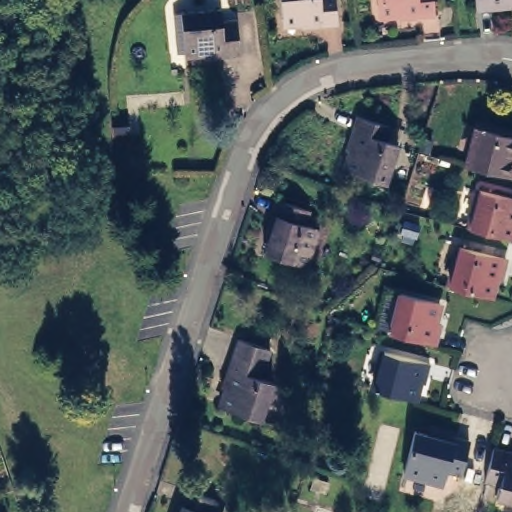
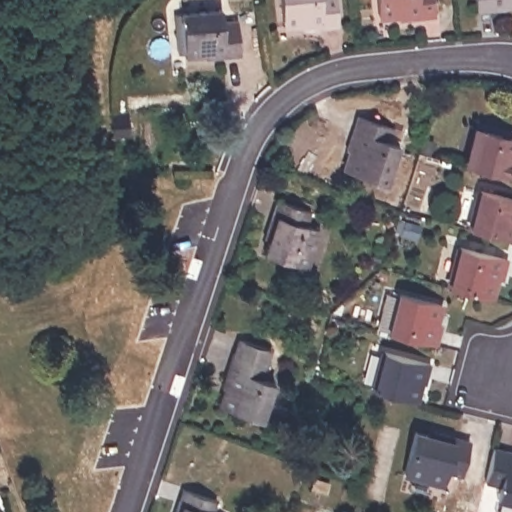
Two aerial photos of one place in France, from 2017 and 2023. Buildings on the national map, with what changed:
unchanged [(303,33),(302,29),(282,31),(279,0),(335,0),(338,30),(303,33)]
unchanged [(376,0),(432,0),(434,21),(398,23),(398,19),(378,20),(376,0)]
unchanged [(510,13),(476,16),(474,0),(512,0),(512,8),(510,8),(510,13)]
unchanged [(181,11),(221,9),(221,21),(238,20),(240,56),(206,58),(206,53),(184,55),(181,11)]
unchanged [(349,170),(356,151),(351,149),(362,117),(383,124),(408,132),(403,145),(390,183),(349,170)]
unchanged [(512,132),(512,167),(511,171),(469,161),(481,123),(512,132)]
unchanged [(474,185),(512,195),(512,216),(511,216),(506,234),(465,223),(474,185)]
unchanged [(324,230),(311,268),(269,254),(276,235),(271,233),(281,200),(314,211),(309,225),(324,230)]
unchanged [(451,281),(459,243),(506,256),(501,275),(496,274),(491,292),(451,281)]
unchanged [(388,329),(397,295),(406,297),(407,293),(451,305),(446,324),(450,325),(444,344),(388,329)]
unchanged [(226,379),(222,377),(228,358),(230,359),(239,331),(273,342),(264,370),(275,374),(263,412),(221,398),(226,379)]
unchanged [(374,385),(384,346),(431,359),(425,378),(421,377),(415,396),(374,385)]
unchanged [(416,431),(454,440),(454,437),(469,441),(459,477),(445,473),(441,487),(403,477),(416,431)]
unchanged [(512,499),(496,494),(499,482),(484,478),(494,442),(512,447),(512,499)]
unchanged [(216,501),(212,512),(175,512),(183,489),(216,501)]
unchanged [(1,512),(0,512),(0,508),(1,512)]

